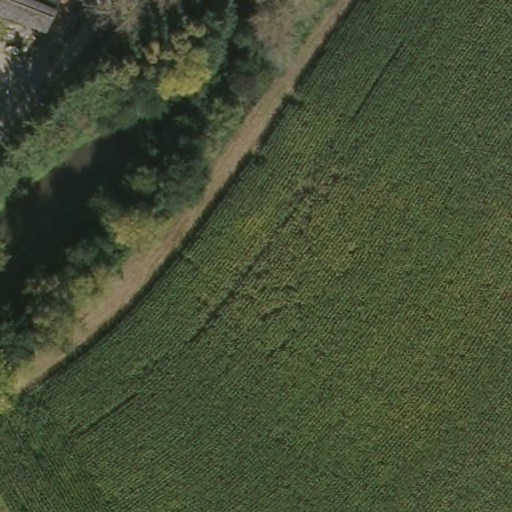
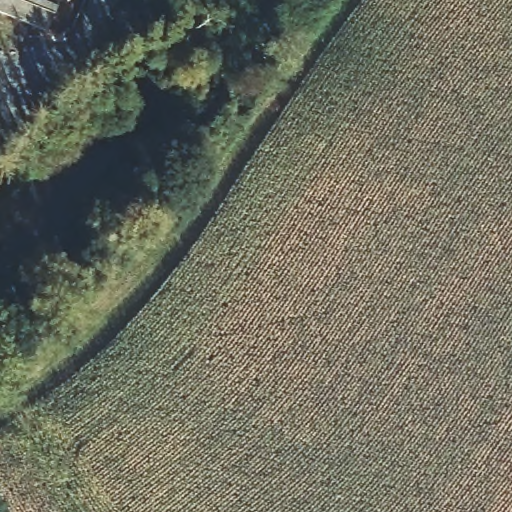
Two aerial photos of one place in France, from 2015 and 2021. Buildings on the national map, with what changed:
unchanged [(0,9),(0,0),(59,0),(49,26),(0,9)]

